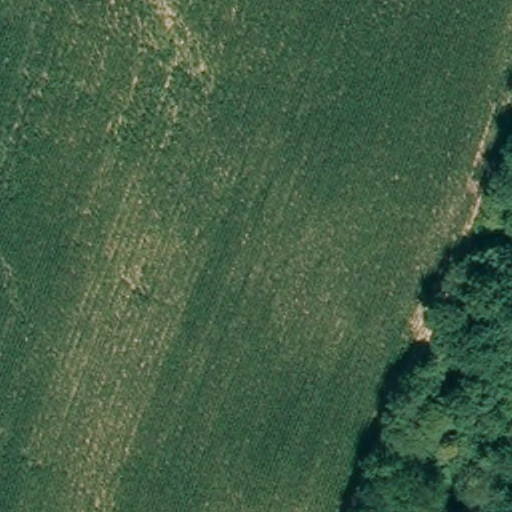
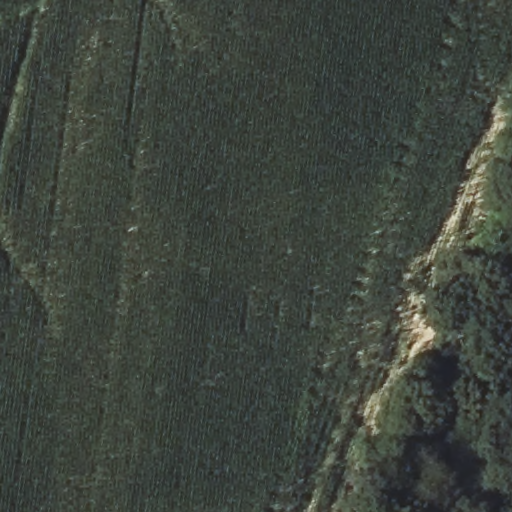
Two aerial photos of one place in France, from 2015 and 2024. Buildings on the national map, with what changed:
[]

